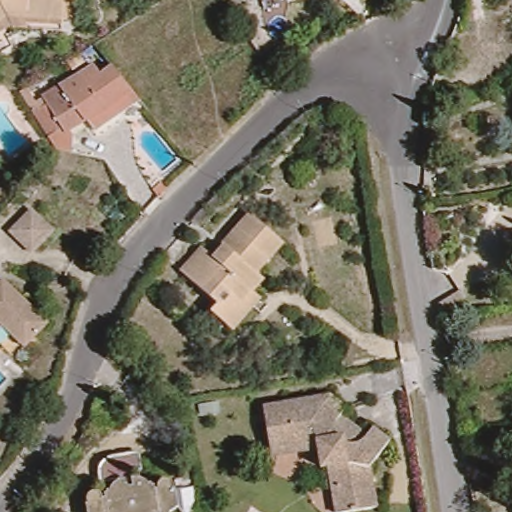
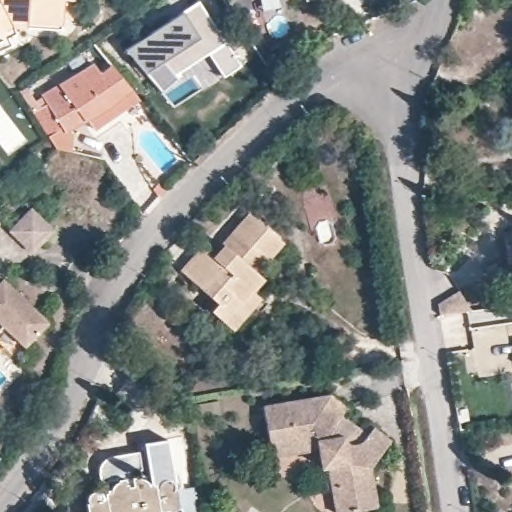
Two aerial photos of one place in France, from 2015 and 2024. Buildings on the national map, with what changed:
unchanged [(77,2),(68,1),(66,20),(11,17),(0,22),(0,0),(77,0),(77,2)]
new [(196,0),(197,0),(239,63),(222,74),(207,52),(174,74),(177,78),(160,92),(124,48),(196,0)]
unchanged [(52,93),(97,64),(104,74),(116,65),(134,88),(110,109),(108,109),(73,128),(70,124),(55,134),(40,109),(56,100),(52,93)]
unchanged [(7,231),(29,210),(54,234),(29,254),(7,231)]
unchanged [(260,301),(232,333),(209,315),(216,308),(179,276),(200,252),(213,262),(224,249),(251,219),(285,247),(259,277),(265,283),(254,296),(260,301)]
unchanged [(3,323),(0,325),(0,278),(2,277),(47,319),(28,338),(24,342),(3,323)]
unchanged [(326,468),(323,449),(274,459),(265,410),(334,398),(354,411),(340,427),(339,433),(338,439),(341,445),(346,449),(352,451),(359,451),(365,448),(379,430),(397,441),(376,466),(383,506),(342,512),(337,488),(334,466),(326,468)]
unchanged [(138,478),(141,478),(143,479),(146,480),(150,483),(156,483),(157,486),(160,485),(161,491),(165,491),(165,488),(165,485),(166,482),(169,479),(171,478),(173,479),(176,479),(178,482),(179,484),(178,490),(175,492),(180,492),(183,510),(181,512),(174,512),(86,512),(86,506),(91,505),(89,504),(87,501),(86,498),(86,495),(87,493),(89,492),(92,491),(95,491),(97,492),(100,495),(100,501),(105,500),(105,494),(108,494),(107,491),(111,490),(118,483),(119,481),(126,479),(127,485),(132,484),(132,488),(135,488),(134,478),(138,478)]

